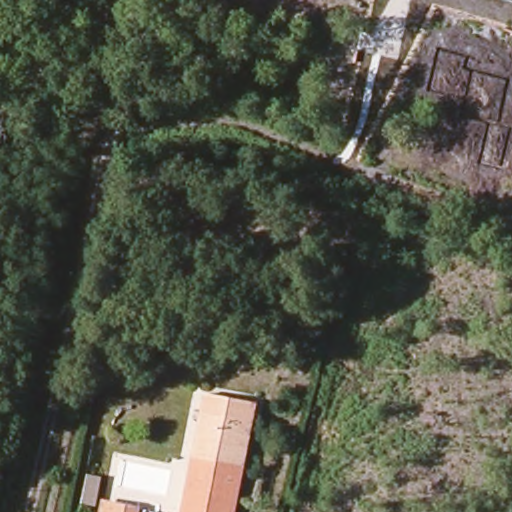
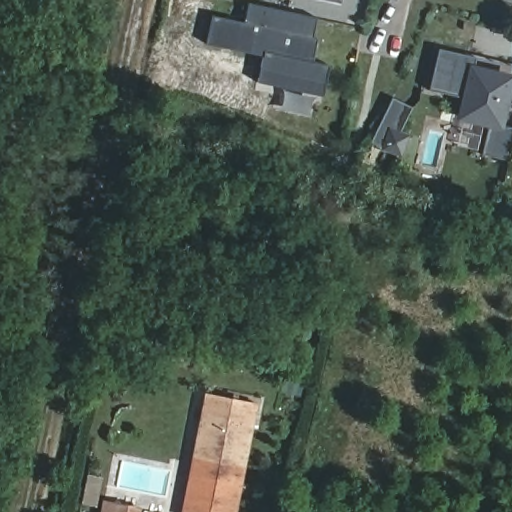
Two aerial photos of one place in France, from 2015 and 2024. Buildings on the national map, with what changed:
new [(342,3),(328,0),(342,0),(342,3)]
new [(323,97),(257,82),(263,55),(207,43),(213,17),(247,24),(251,3),(316,18),(312,36),(318,38),(313,63),(330,66),(323,97)]
new [(481,155),(489,127),(456,121),(462,98),(430,90),(439,48),(474,56),(474,65),(512,73),(512,79),(503,125),(512,126),(512,146),(508,161),(481,155)]
new [(401,131),(409,134),(399,159),(380,150),(382,146),(372,141),(393,98),(413,107),(401,131)]
unchanged [(180,512),(186,481),(190,459),(204,397),(251,407),(237,471),(233,492),(229,512),(180,512)]
new [(149,505),(148,512),(100,512),(104,497),(149,505)]

